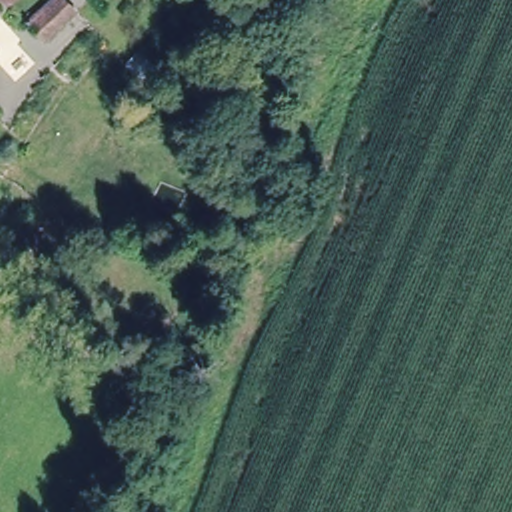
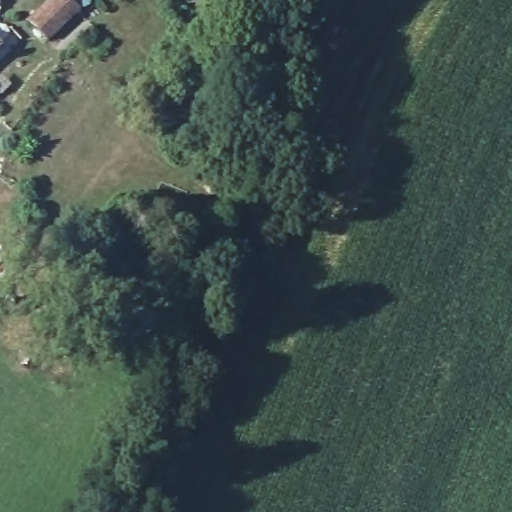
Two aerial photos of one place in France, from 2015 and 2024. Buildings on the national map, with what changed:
unchanged [(56,0),(76,0),(81,5),(49,38),(34,21),(56,0)]
unchanged [(4,7),(0,10),(0,2),(4,7)]
unchanged [(7,52),(0,58),(0,43),(7,52)]

